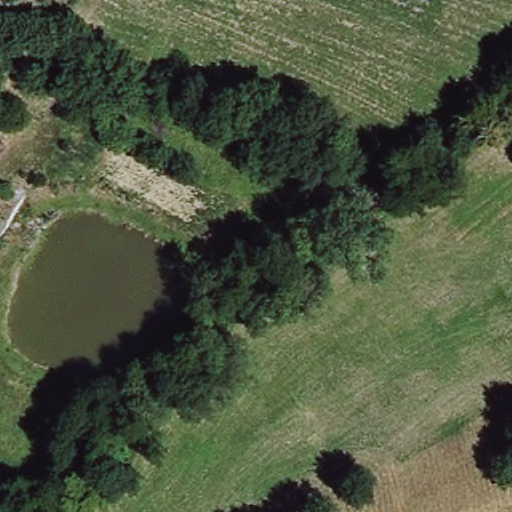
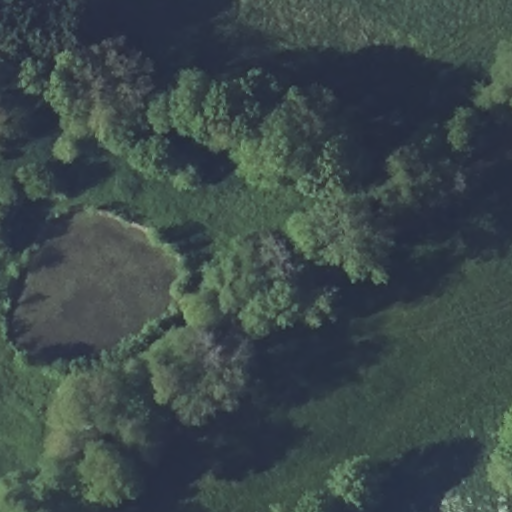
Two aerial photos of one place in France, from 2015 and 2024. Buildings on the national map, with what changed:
[]

